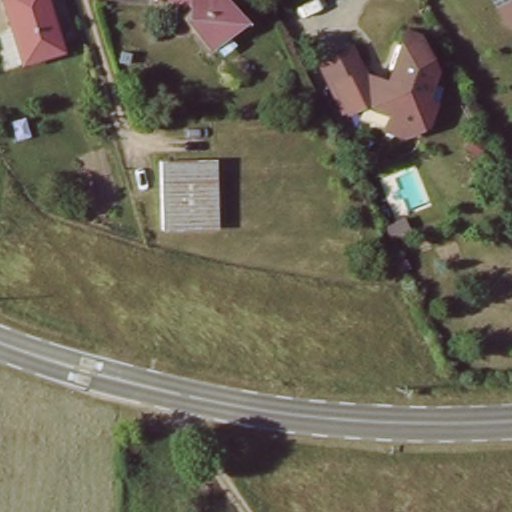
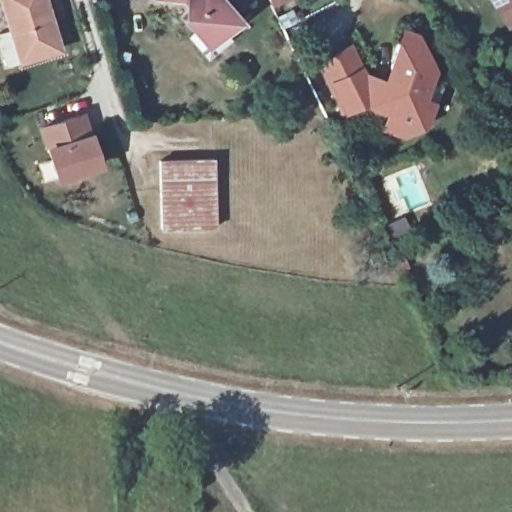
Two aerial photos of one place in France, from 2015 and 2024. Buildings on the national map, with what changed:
unchanged [(0,46),(0,31),(10,28),(1,0),(45,0),(60,49),(20,62),(6,66),(0,46)]
unchanged [(179,0),(229,0),(245,18),(216,44),(202,29),(199,32),(185,15),(187,14),(195,7),(190,0),(188,0),(179,0)]
new [(236,8),(229,0),(249,0),(236,8)]
new [(271,6),(267,0),(282,0),(271,6)]
unchanged [(508,24),(493,0),(512,0),(512,22),(508,24)]
unchanged [(366,78),(374,74),(384,77),(389,64),(385,63),(394,37),(411,29),(425,58),(421,69),(424,75),(417,95),(424,108),(420,119),(398,129),(388,108),(357,97),(341,104),(328,76),(318,56),(345,42),(355,63),(362,76),(366,78)]
new [(105,168),(58,183),(45,147),(40,127),(87,111),(92,131),(105,168)]
unchanged [(215,227),(162,229),(160,160),(214,158),(215,227)]

